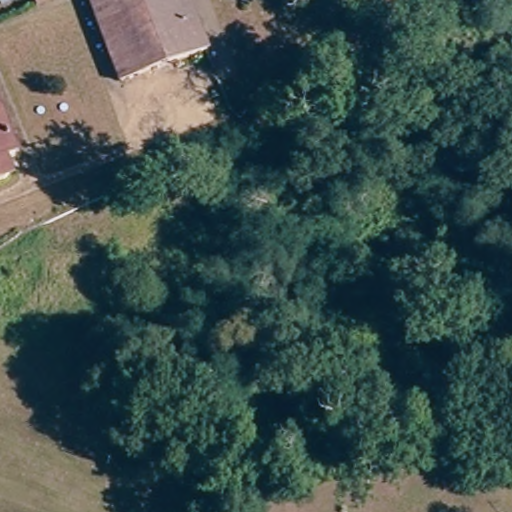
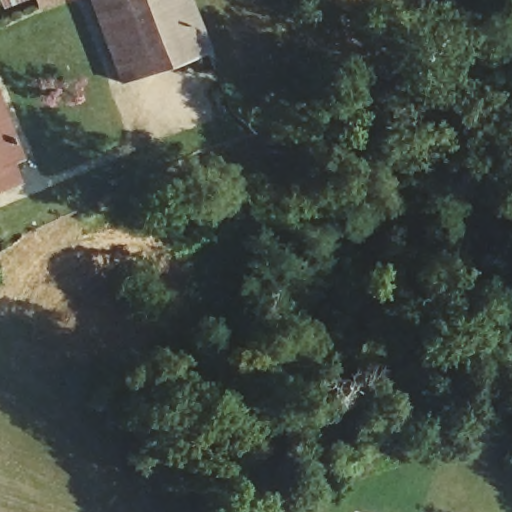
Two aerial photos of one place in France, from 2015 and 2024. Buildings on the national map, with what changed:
unchanged [(35,0),(65,0),(39,10),(35,0)]
unchanged [(127,81),(94,0),(190,0),(208,50),(127,81)]
unchanged [(1,161),(10,181),(0,184),(0,123),(14,156),(1,161)]

